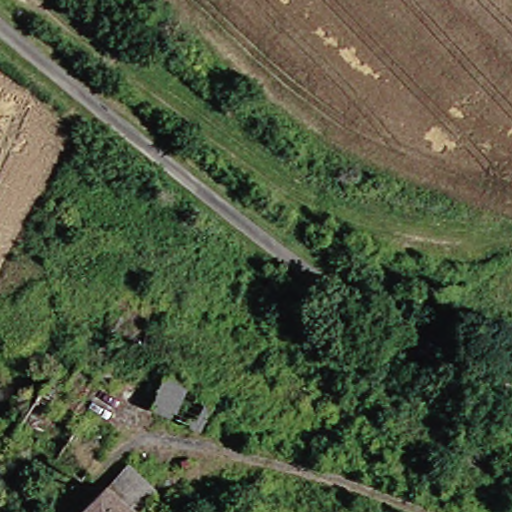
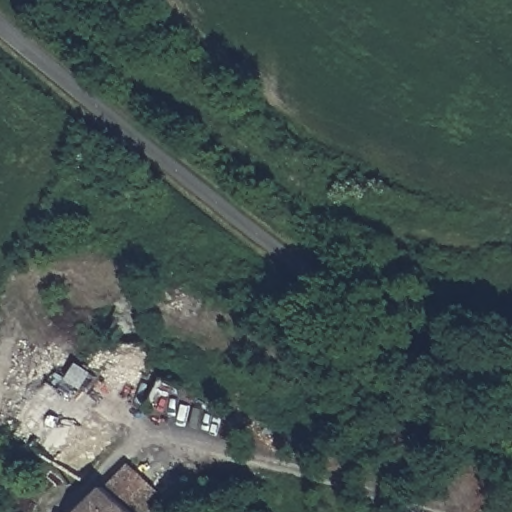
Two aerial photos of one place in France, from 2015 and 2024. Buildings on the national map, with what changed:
unchanged [(198,427),(164,398),(181,376),(217,405),(198,427)]
unchanged [(107,489),(147,464),(172,485),(150,512),(84,512),(107,489)]

